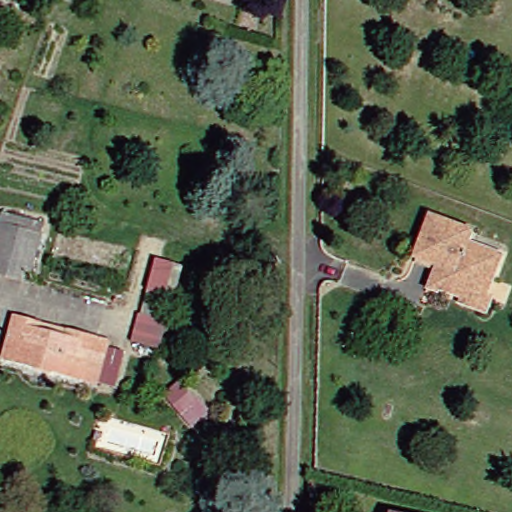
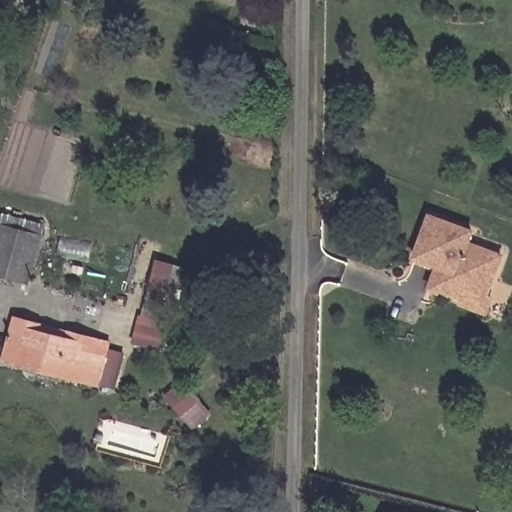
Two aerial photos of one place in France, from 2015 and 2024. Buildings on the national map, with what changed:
unchanged [(481,308),(458,300),(460,294),(433,283),(442,262),(413,250),(429,210),(471,227),(466,238),(500,251),(483,293),(487,295),(481,308)]
unchanged [(20,273),(0,269),(0,219),(32,227),(20,273)]
unchanged [(132,340),(156,254),(180,261),(161,345),(132,340)]
unchanged [(91,380),(71,375),(70,379),(0,361),(11,316),(36,323),(64,331),(100,340),(91,380)]
unchanged [(409,512),(393,512),(394,508),(409,512)]

